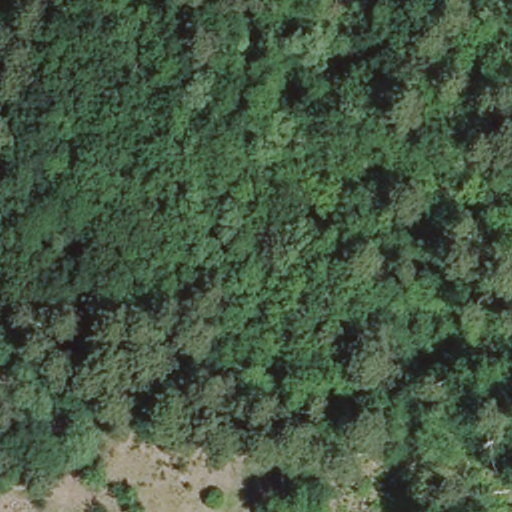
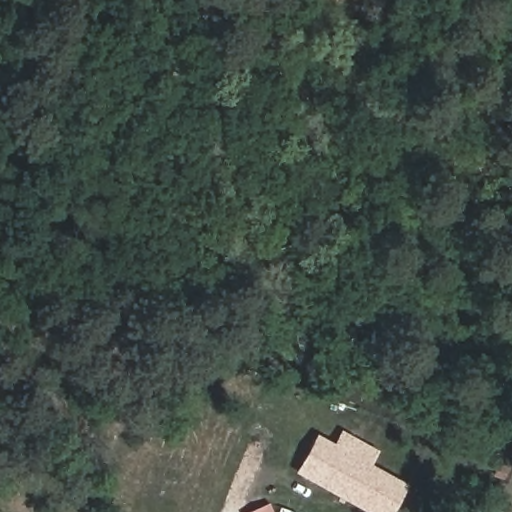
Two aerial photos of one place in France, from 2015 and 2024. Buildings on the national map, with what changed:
new [(334,444),(341,431),(379,451),(371,465),(408,485),(392,512),(366,512),(295,473),(316,435),(334,444)]
new [(248,512),(268,503),(271,512),(248,512)]

